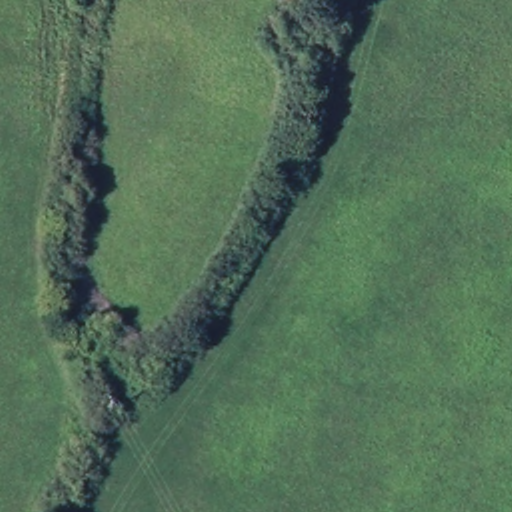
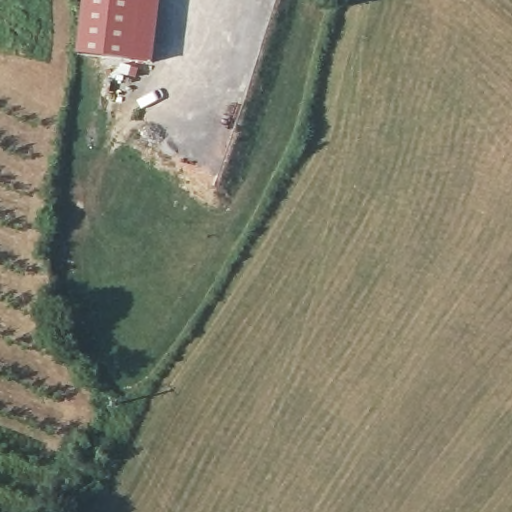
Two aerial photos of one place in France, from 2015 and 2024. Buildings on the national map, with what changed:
new [(152,65),(72,58),(80,0),(160,0),(152,65)]

